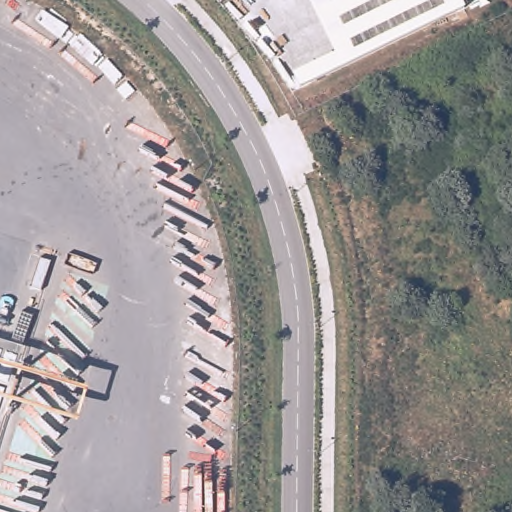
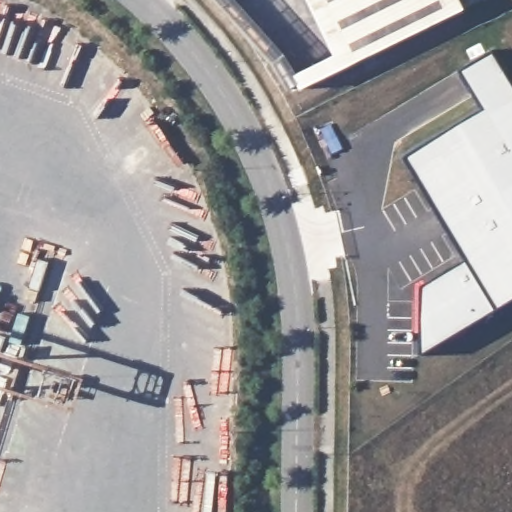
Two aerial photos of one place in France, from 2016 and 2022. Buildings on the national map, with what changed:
unchanged [(467,9),(302,89),(295,74),(335,54),(309,0),(463,0),(467,9)]
new [(422,355),(423,285),(468,258),(406,157),(486,109),(460,71),(493,50),(512,80),(512,300),(422,355)]

